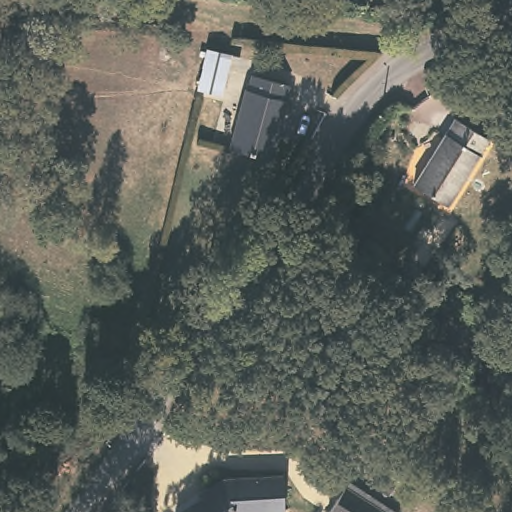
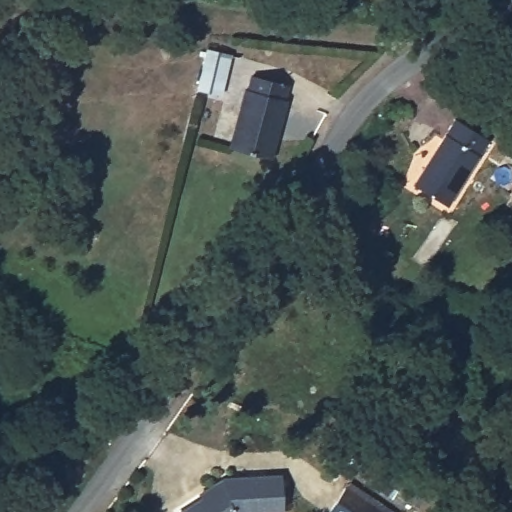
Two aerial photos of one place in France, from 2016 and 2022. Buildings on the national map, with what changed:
unchanged [(228,58),(218,98),(195,93),(204,53),(228,58)]
unchanged [(245,95),(249,95),(253,82),(287,93),(283,106),(286,107),(269,164),(228,152),(245,95)]
unchanged [(492,147),(449,212),(415,189),(458,124),(492,147)]
unchanged [(509,238),(512,235),(512,240),(509,238)]
unchanged [(282,480),(282,512),(180,512),(209,494),(207,489),(220,481),(268,480),(282,480)]
unchanged [(366,512),(330,512),(343,494),(366,512)]

